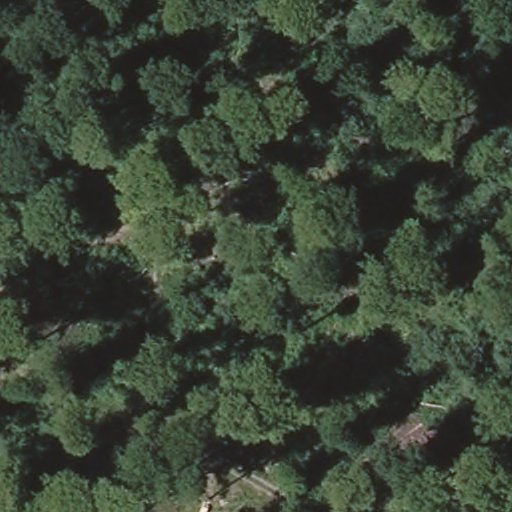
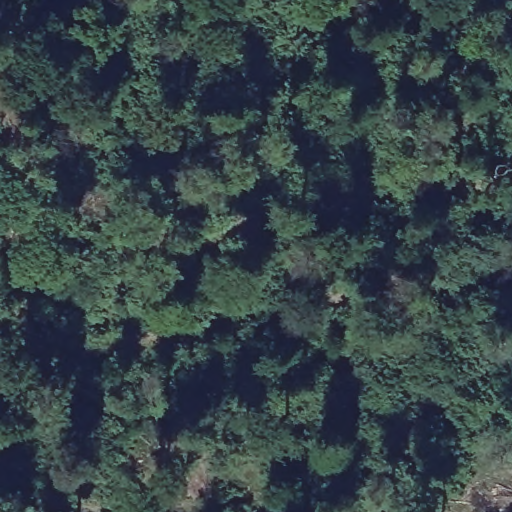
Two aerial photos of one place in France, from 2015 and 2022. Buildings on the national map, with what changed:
[]

